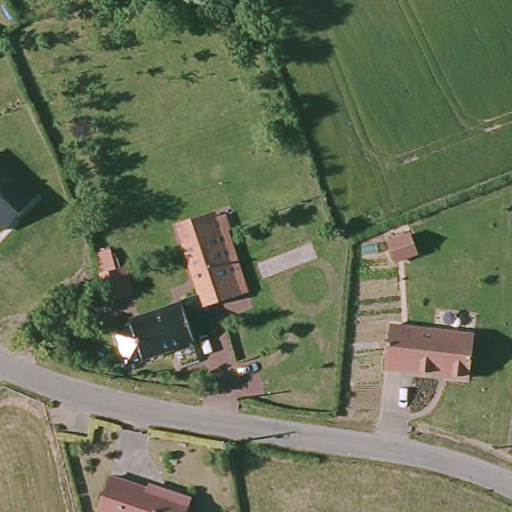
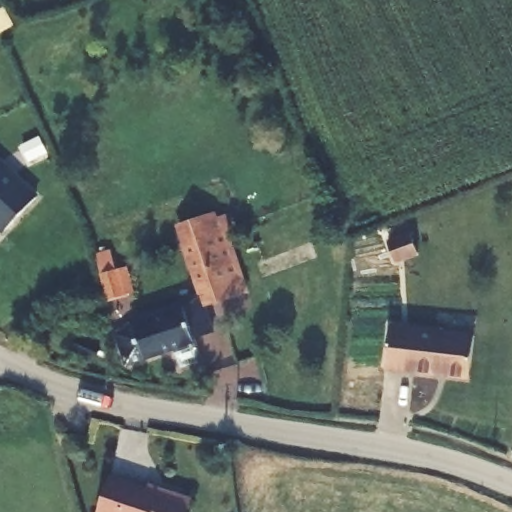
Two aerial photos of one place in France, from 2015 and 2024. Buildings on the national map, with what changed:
unchanged [(8,235),(0,228),(0,162),(40,199),(8,235)]
unchanged [(232,264),(192,277),(183,248),(177,231),(214,218),(232,264)]
unchanged [(411,230),(418,248),(395,257),(388,238),(411,230)]
unchanged [(201,295),(198,296),(192,277),(232,264),(237,281),(242,295),(205,306),(201,295)]
unchanged [(128,297),(108,305),(99,275),(117,269),(128,297)]
unchanged [(180,372),(172,351),(127,366),(117,335),(134,322),(139,324),(180,310),(178,302),(198,296),(201,295),(205,306),(214,331),(192,338),(194,344),(202,365),(180,372)]
unchanged [(473,337),(468,382),(386,370),(392,325),(473,337)]
unchanged [(113,477),(161,492),(163,487),(192,496),(187,512),(102,512),(113,477)]

